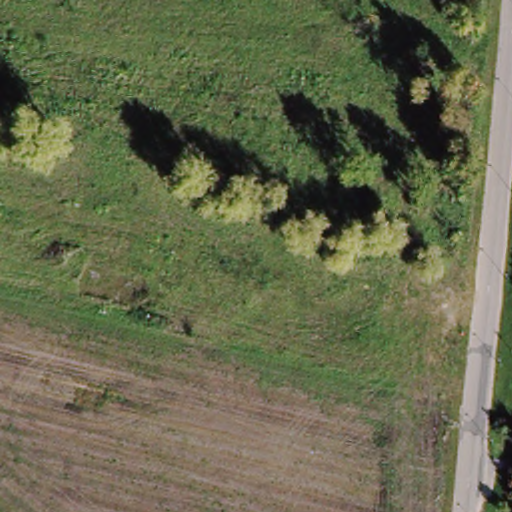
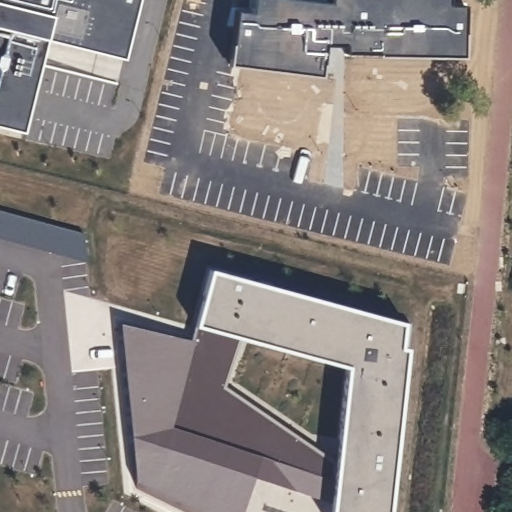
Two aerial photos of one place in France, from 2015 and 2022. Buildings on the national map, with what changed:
new [(39,40),(17,129),(0,125),(0,0),(129,0),(114,59),(39,40)]
new [(90,262),(0,238),(0,211),(87,234),(90,262)]
new [(368,512),(349,512),(349,506),(335,502),(334,509),(255,477),(243,512),(193,512),(137,486),(122,326),(192,341),(194,329),(195,326),(210,271),(403,322),(400,347),(409,349),(393,512),(370,512),(368,512)]
new [(349,506),(349,512),(333,512),(335,502),(349,506)]

